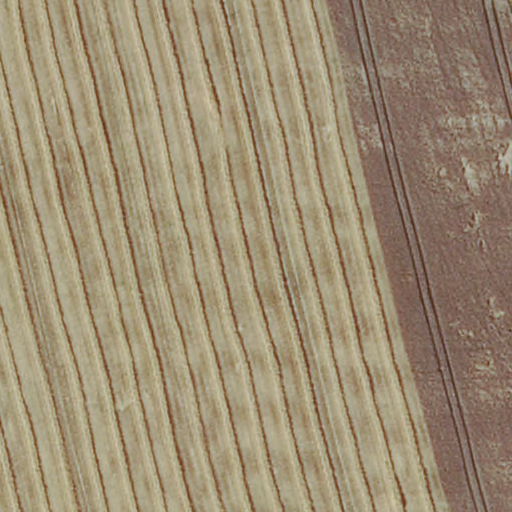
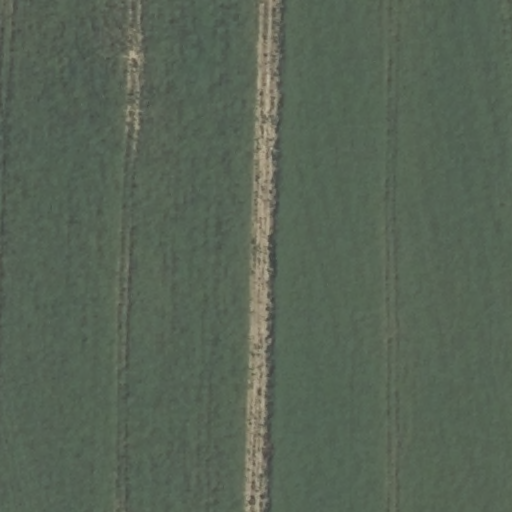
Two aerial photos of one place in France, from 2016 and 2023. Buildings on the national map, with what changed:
[]

